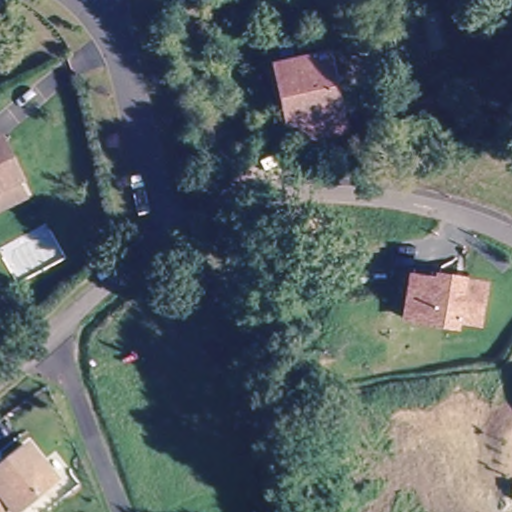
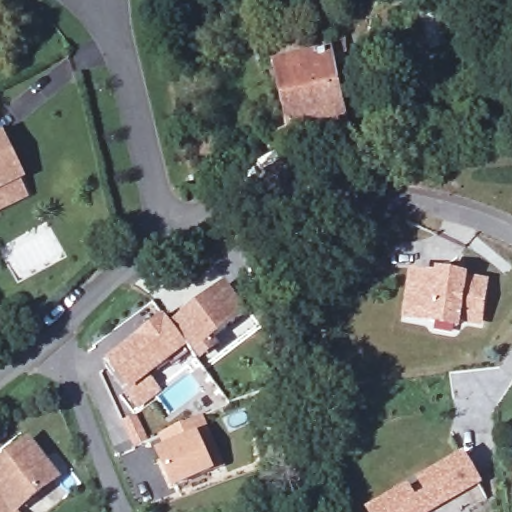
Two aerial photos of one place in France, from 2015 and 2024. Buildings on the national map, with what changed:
unchanged [(289,145),(271,66),(310,58),(306,38),(340,31),(344,51),(327,54),(346,133),(289,145)]
unchanged [(5,209),(0,211),(0,134),(8,150),(18,172),(30,197),(5,209)]
unchanged [(433,324),(406,320),(412,280),(437,284),(438,280),(484,288),(478,325),(458,322),(458,317),(434,313),(433,324)]
new [(227,283),(246,307),(194,347),(188,339),(176,323),(227,283)]
new [(170,315),(176,323),(188,339),(131,383),(112,359),(170,315)]
new [(155,454),(163,450),(159,438),(204,417),(225,467),(215,472),(172,492),(155,454)]
unchanged [(0,512),(0,472),(30,447),(40,460),(55,480),(46,487),(16,512),(0,512)]
new [(433,512),(367,512),(366,510),(409,485),(417,500),(426,496),(418,480),(462,452),(483,482),(433,512)]

